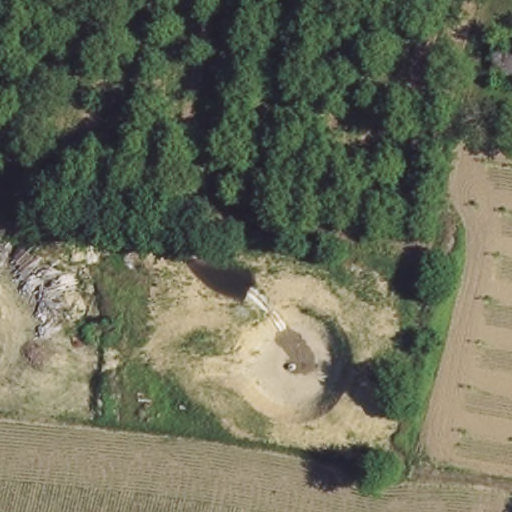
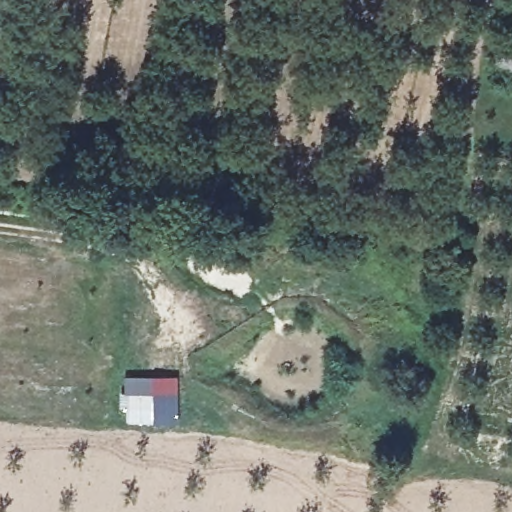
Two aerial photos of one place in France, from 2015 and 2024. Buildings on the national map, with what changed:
new [(119,374),(176,373),(176,421),(125,421),(125,405),(116,405),(119,374)]

